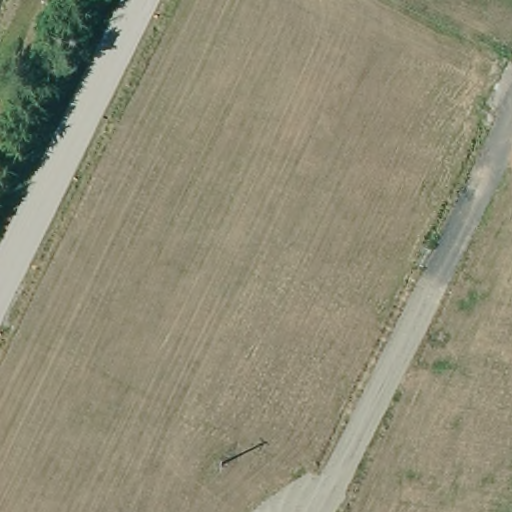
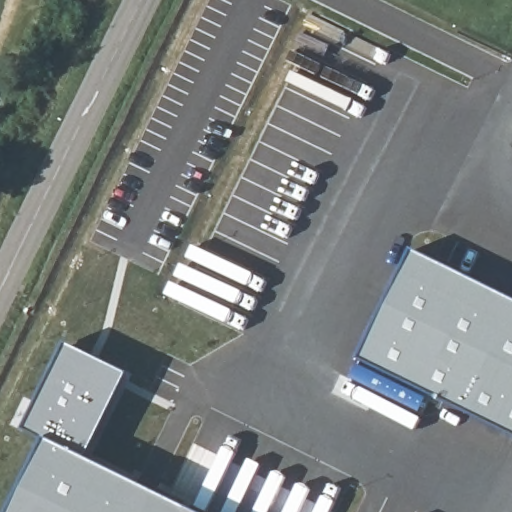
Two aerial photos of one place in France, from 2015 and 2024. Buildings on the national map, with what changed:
new [(512,302),(512,433),(361,363),(416,255),(512,302)]
new [(129,376),(89,461),(47,443),(26,432),(66,347),(129,376)]
new [(192,512),(13,512),(47,443),(89,461),(192,512)]

